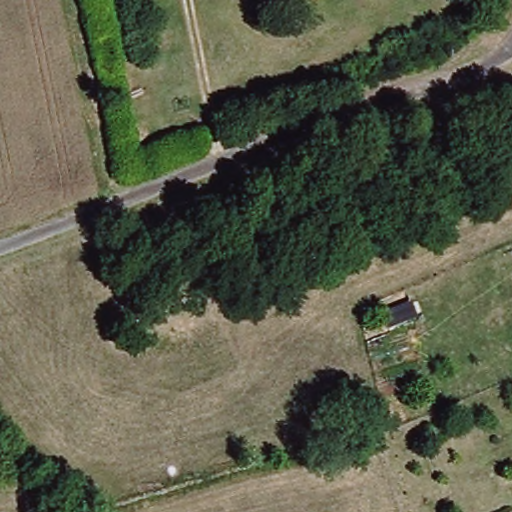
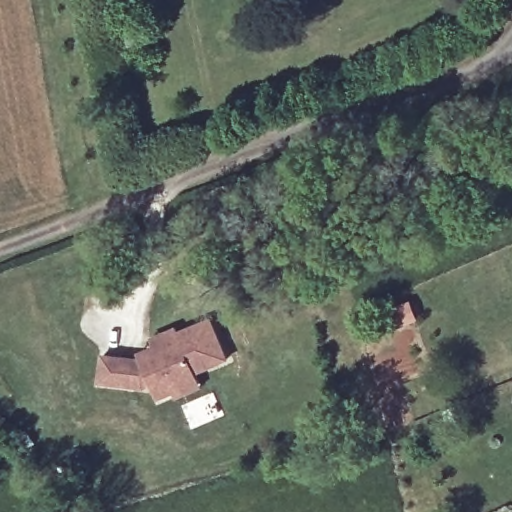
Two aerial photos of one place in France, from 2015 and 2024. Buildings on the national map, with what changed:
new [(102,352),(141,358),(138,351),(153,345),(150,337),(176,326),(178,331),(211,317),(229,358),(197,372),(203,388),(177,399),(174,392),(157,400),(151,385),(140,389),(98,383),(102,352)]

